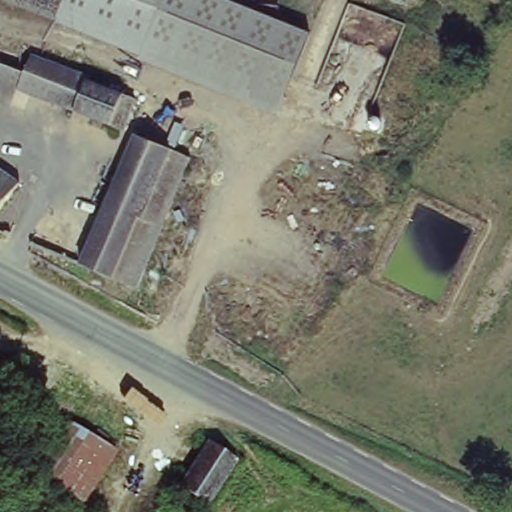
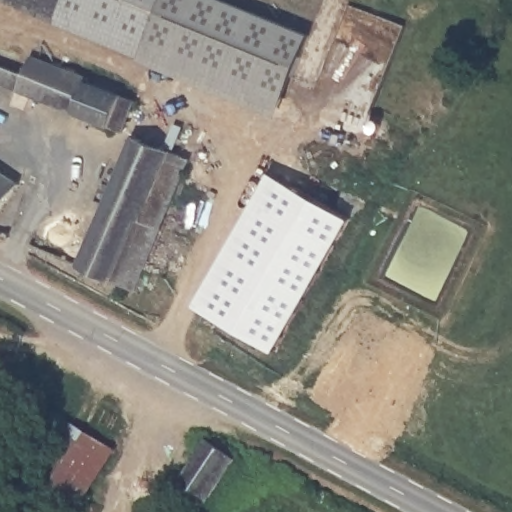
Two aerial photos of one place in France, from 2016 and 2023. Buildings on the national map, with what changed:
unchanged [(144,52),(16,0),(164,0),(144,52)]
unchanged [(310,29),(282,111),(141,59),(144,52),(164,0),(238,0),(310,29)]
unchanged [(36,51),(90,71),(91,78),(135,94),(122,130),(19,93),(0,84),(0,46),(32,57),(36,51)]
unchanged [(14,104),(0,98),(0,84),(19,93),(14,104)]
unchanged [(80,268),(132,138),(197,159),(145,294),(80,268)]
unchanged [(0,199),(0,172),(12,182),(0,199)]
new [(278,350),(197,305),(272,172),(353,218),(278,350)]
unchanged [(35,480),(69,424),(91,438),(60,495),(35,480)]
unchanged [(91,438),(119,454),(86,510),(60,495),(91,438)]
unchanged [(204,440),(233,456),(204,504),(174,487),(204,440)]

